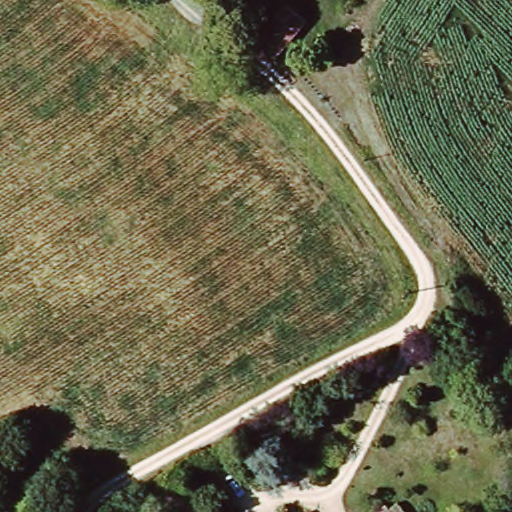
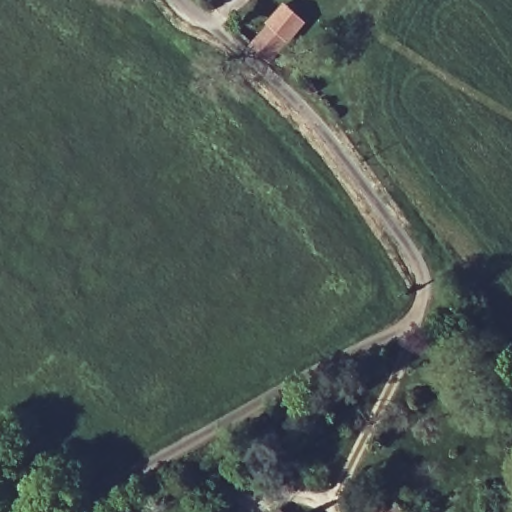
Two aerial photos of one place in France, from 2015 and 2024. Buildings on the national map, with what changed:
unchanged [(291,13),(298,18),(306,27),(276,62),(260,46),(291,13)]
unchanged [(290,512),(288,512),(289,511),(290,512)]

